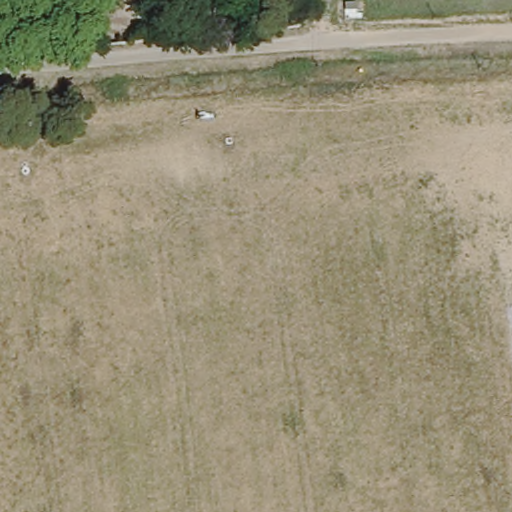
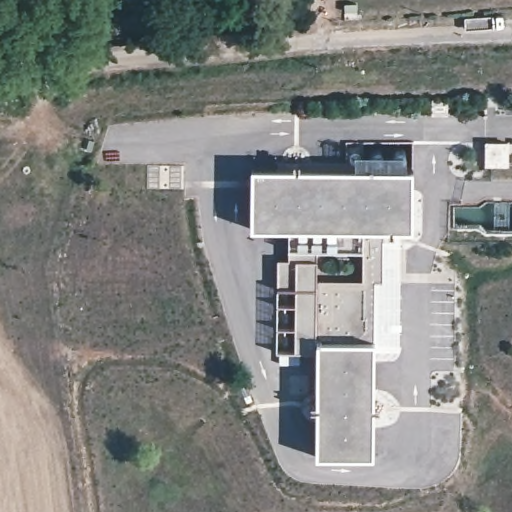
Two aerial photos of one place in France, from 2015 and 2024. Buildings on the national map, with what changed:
new [(412,231),(396,230),(395,347),(373,345),(370,460),(315,458),(312,351),(270,351),(274,257),(284,257),(283,230),(247,229),(248,169),(410,170),(412,231)]

